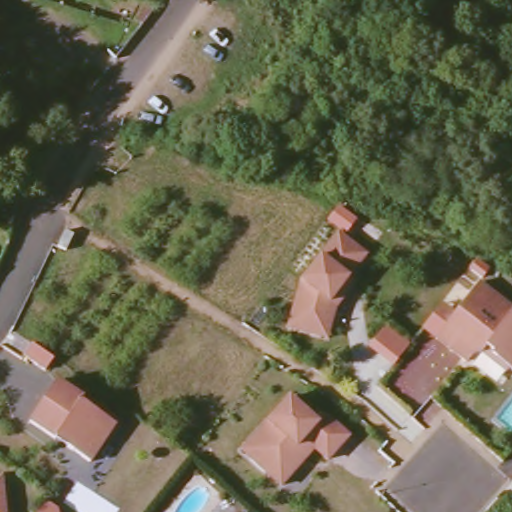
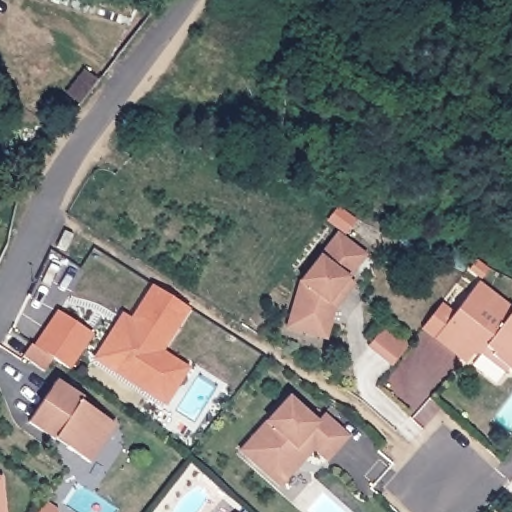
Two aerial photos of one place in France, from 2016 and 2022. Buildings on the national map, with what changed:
unchanged [(339,209),(355,222),(346,234),(330,222),(339,209)]
unchanged [(65,237),(57,254),(50,250),(57,234),(65,237)]
unchanged [(337,309),(329,339),(290,328),(291,321),(302,283),(338,235),(367,256),(350,279),(356,284),(337,309)]
unchanged [(484,354),(475,356),(470,364),(438,339),(425,329),(443,305),(456,315),(480,284),(512,308),(512,370),(510,373),(491,360),(484,354)]
new [(190,310),(163,352),(190,367),(166,407),(91,360),(122,313),(130,318),(150,285),(190,310)]
new [(30,345),(33,346),(58,311),(93,335),(70,369),(51,359),(44,371),(22,358),(30,345)]
unchanged [(411,341),(391,366),(367,347),(387,322),(411,341)]
demolished [(47,362),(39,374),(17,360),(25,348),(47,362)]
unchanged [(34,424),(60,383),(86,400),(85,403),(107,417),(120,425),(113,434),(95,463),(72,448),(60,441),(34,424)]
unchanged [(282,489),(252,462),(243,454),(256,439),(291,399),(319,423),(326,415),(351,437),(330,462),(316,450),(307,460),(300,469),(282,489)]
unchanged [(2,480),(6,512),(0,512),(0,480),(2,480)]

